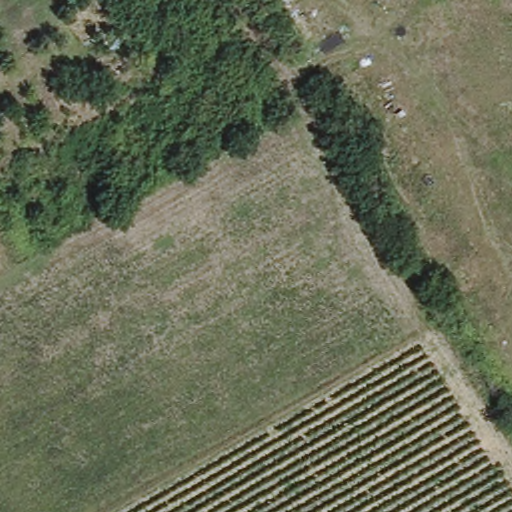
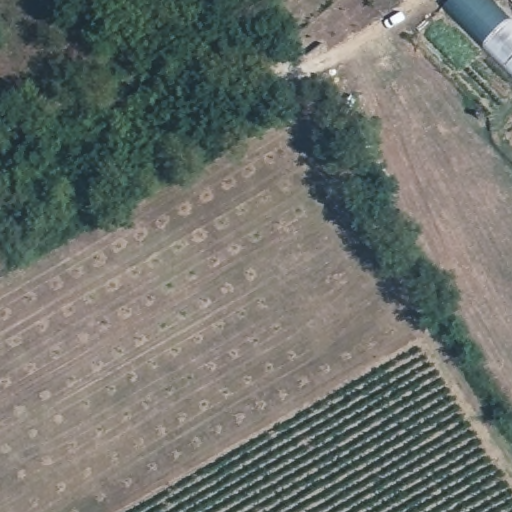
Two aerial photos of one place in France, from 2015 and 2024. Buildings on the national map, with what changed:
new [(452,0),(491,0),(512,21),(512,73),(446,6),(452,0)]

